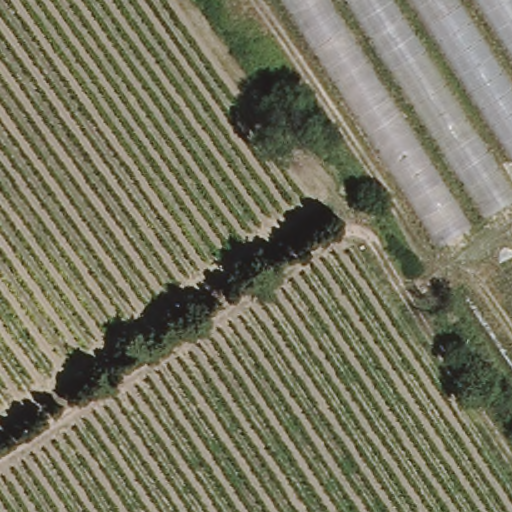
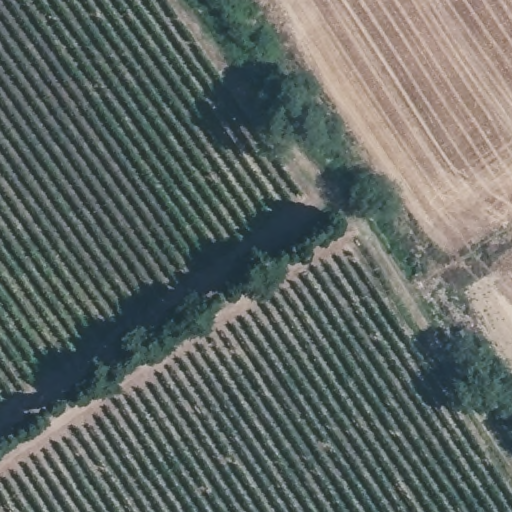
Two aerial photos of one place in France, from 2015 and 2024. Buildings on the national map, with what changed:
demolished [(512,200),(437,247),(280,0),(512,0),(512,200)]
demolished [(512,299),(495,274),(512,263),(512,299)]

